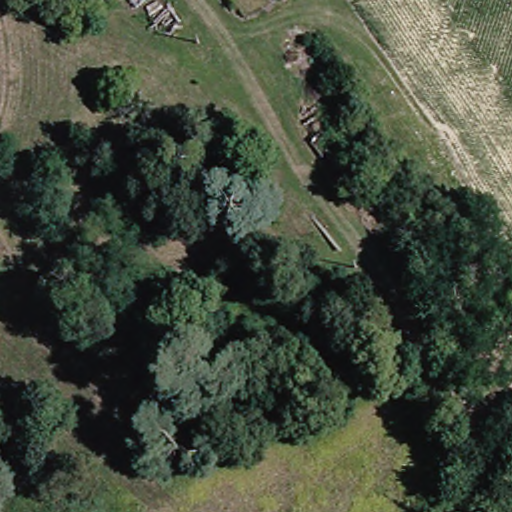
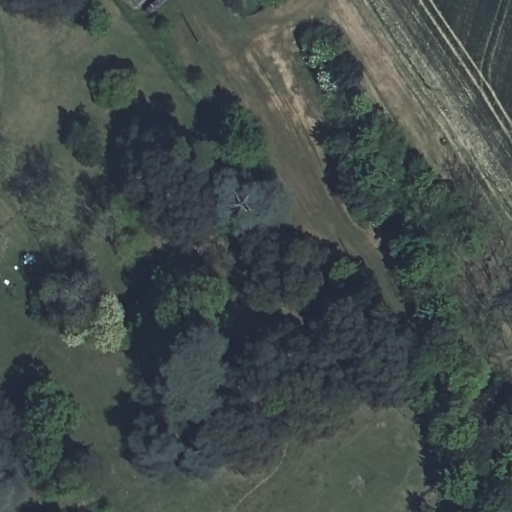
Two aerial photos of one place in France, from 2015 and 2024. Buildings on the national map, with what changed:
unchanged [(0,247),(0,235),(5,243),(0,247)]

